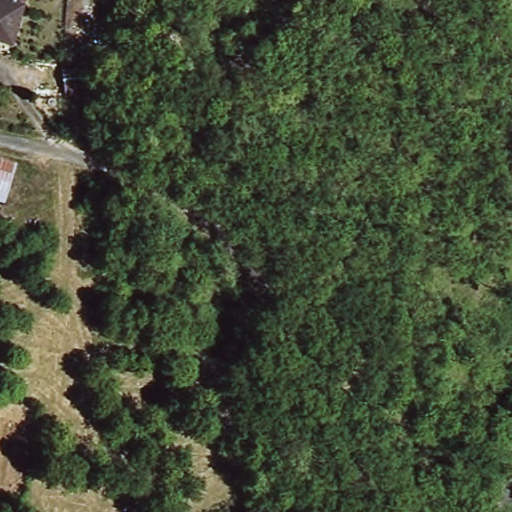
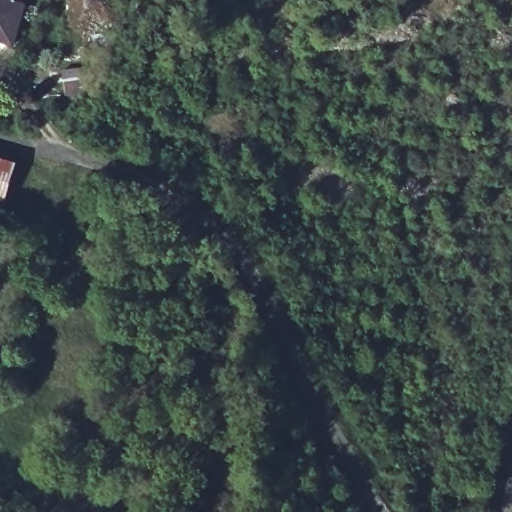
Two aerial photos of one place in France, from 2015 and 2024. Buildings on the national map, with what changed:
unchanged [(17,0),(28,3),(17,41),(0,36),(0,0),(17,0)]
unchanged [(13,154),(13,159),(10,191),(0,190),(0,153),(13,154)]

